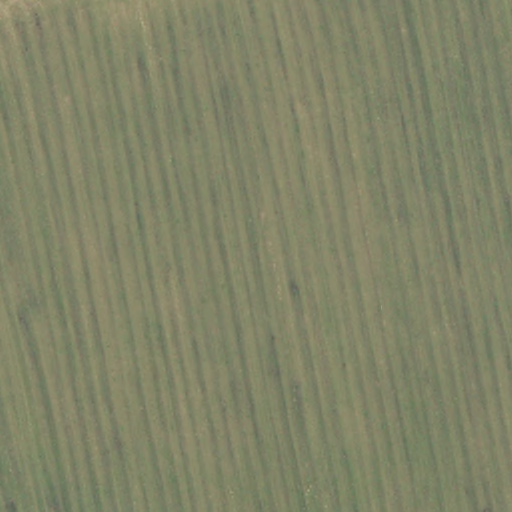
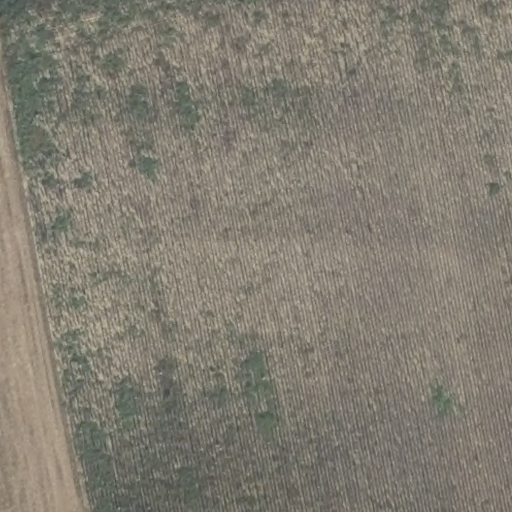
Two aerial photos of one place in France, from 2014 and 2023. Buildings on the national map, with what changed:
[]

